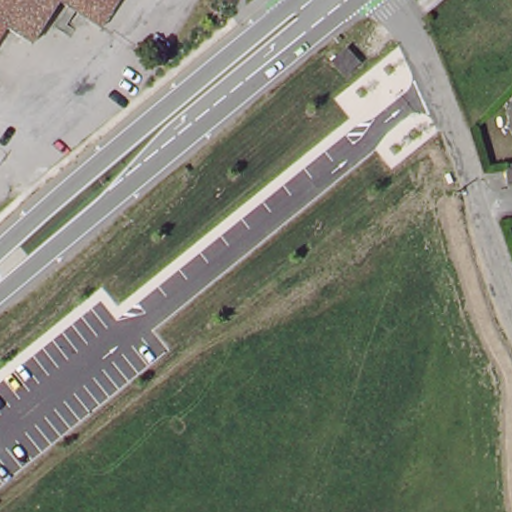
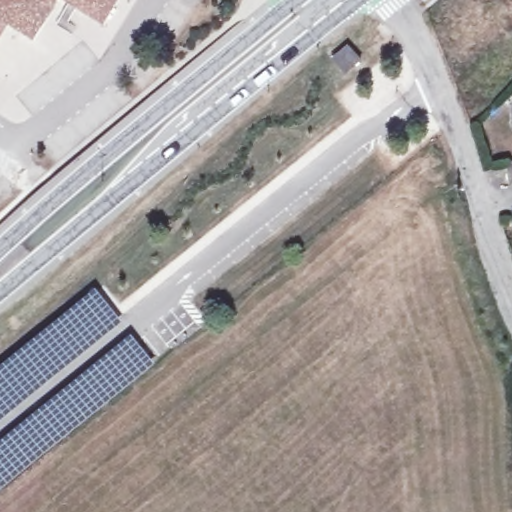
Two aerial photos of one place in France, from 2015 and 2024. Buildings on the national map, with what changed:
unchanged [(106,28),(80,12),(73,7),(63,1),(36,44),(9,26),(0,40),(0,0),(123,0),(106,28)]
unchanged [(371,69),(357,83),(341,67),(354,54),(371,69)]
new [(113,329),(0,420),(0,370),(90,299),(113,329)]
new [(153,364),(0,488),(0,447),(133,340),(153,364)]

